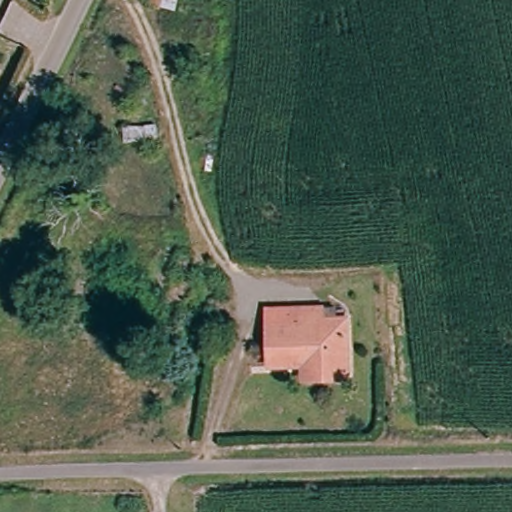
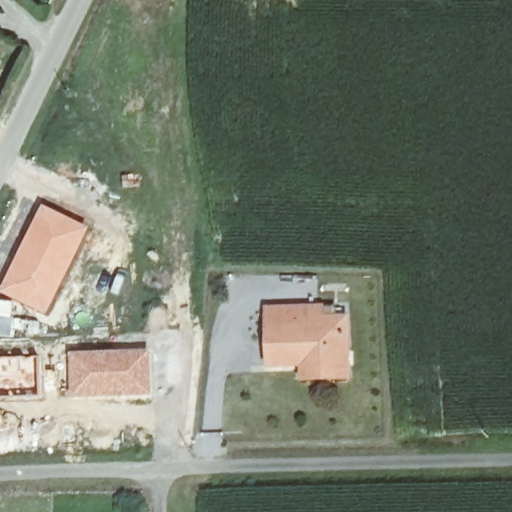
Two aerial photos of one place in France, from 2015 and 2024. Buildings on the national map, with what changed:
new [(10,268),(41,204),(89,228),(45,317),(14,302),(7,298),(0,294),(10,268)]
new [(6,302),(7,298),(14,302),(11,339),(0,338),(0,301),(6,302)]
unchanged [(298,380),(298,366),(298,361),(264,360),(265,323),(265,302),(299,302),(318,303),(318,317),(343,318),(343,332),(343,380),(298,380)]
new [(151,350),(152,397),(66,399),(66,352),(151,350)]
new [(40,357),(40,397),(0,399),(0,358),(40,357)]

